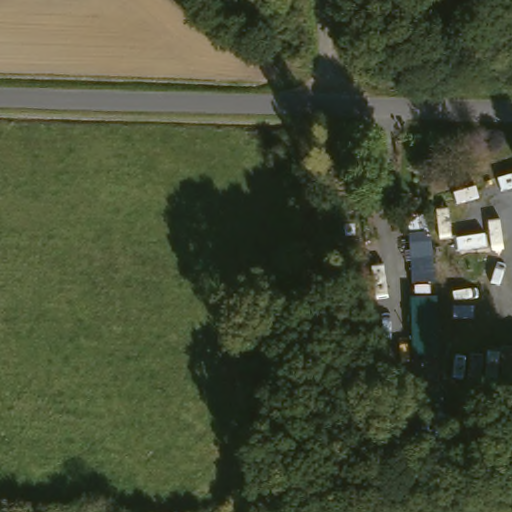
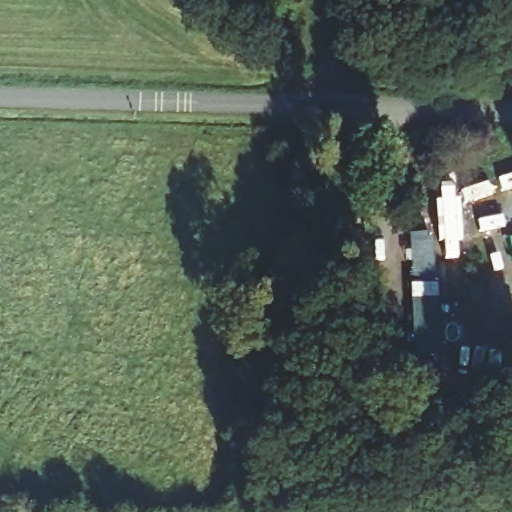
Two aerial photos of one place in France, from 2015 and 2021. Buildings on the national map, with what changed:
unchanged [(512,351),(512,412),(491,412),(486,351),(512,351)]

